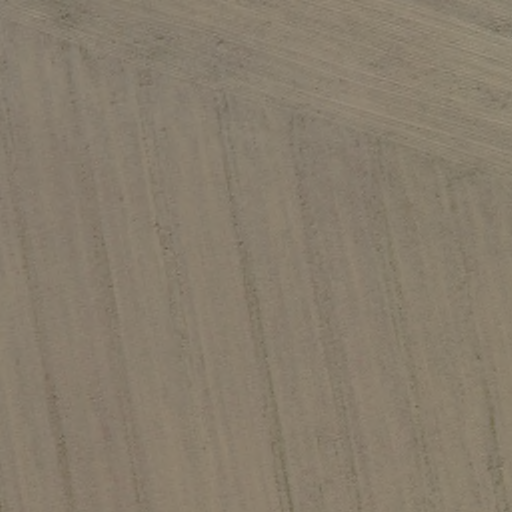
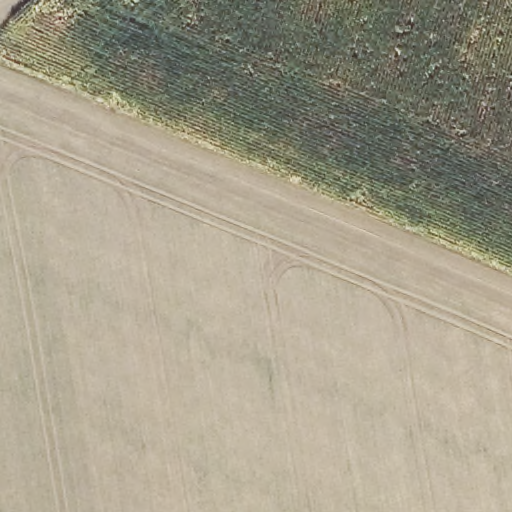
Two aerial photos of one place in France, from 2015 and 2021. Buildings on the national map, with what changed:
[]

